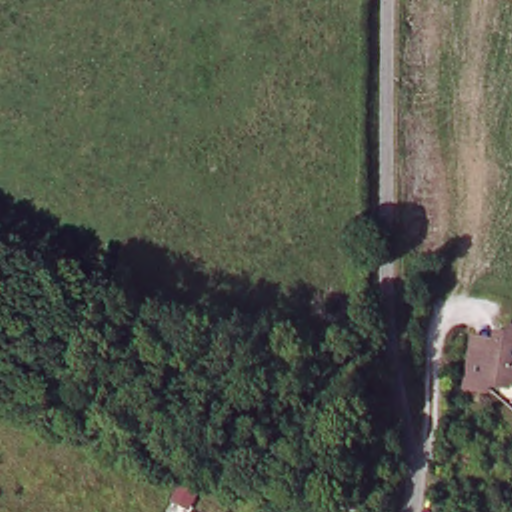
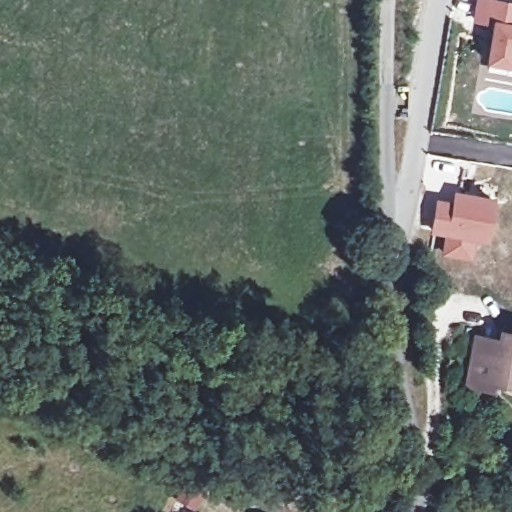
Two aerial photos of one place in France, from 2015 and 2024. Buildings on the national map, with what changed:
new [(512,66),(491,62),(497,24),(478,21),(482,0),(488,0),(512,4),(512,66)]
new [(441,256),(443,235),(430,233),(434,196),(450,198),(451,188),(492,196),(486,241),(475,240),(472,260),(441,256)]
unchanged [(488,347),(495,341),(497,328),(511,329),(512,325),(512,375),(510,375),(509,382),(490,378),(489,386),(464,381),(471,343),(488,347)]
new [(490,378),(509,382),(510,375),(512,375),(512,390),(495,387),(494,392),(465,388),(464,381),(489,386),(490,378)]

